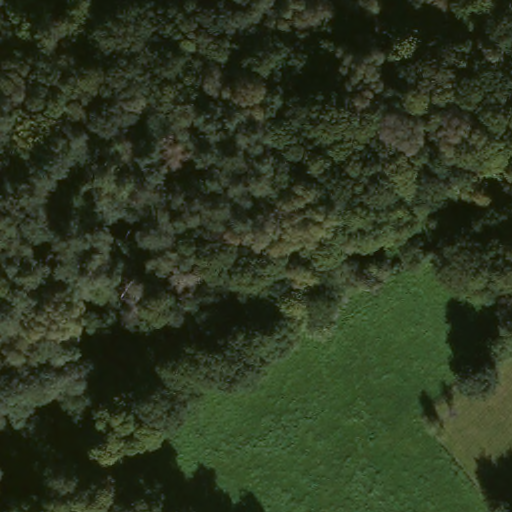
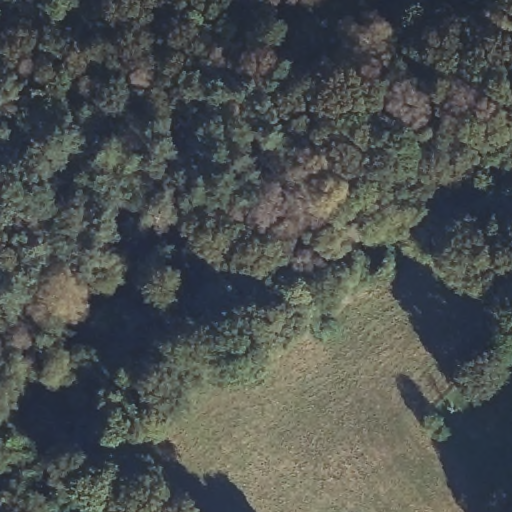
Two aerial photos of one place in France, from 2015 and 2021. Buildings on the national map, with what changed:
[]

